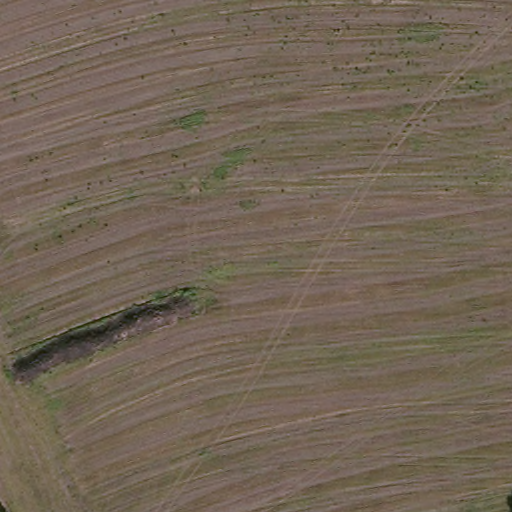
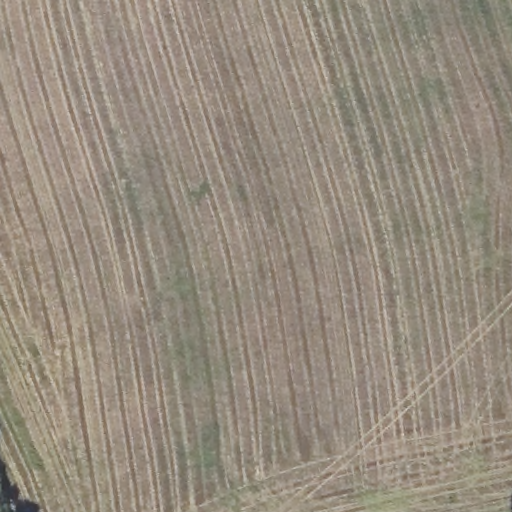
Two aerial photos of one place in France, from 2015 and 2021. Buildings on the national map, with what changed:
[]

